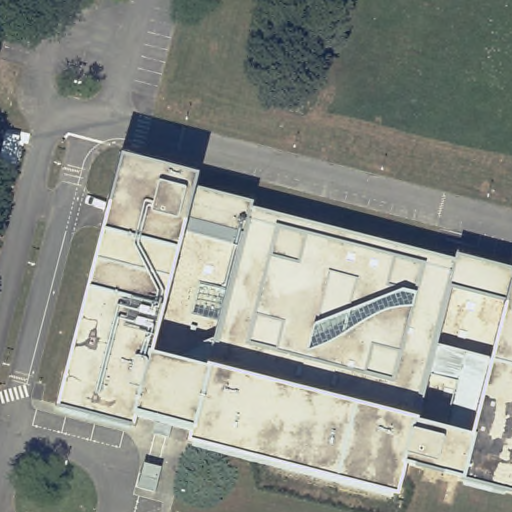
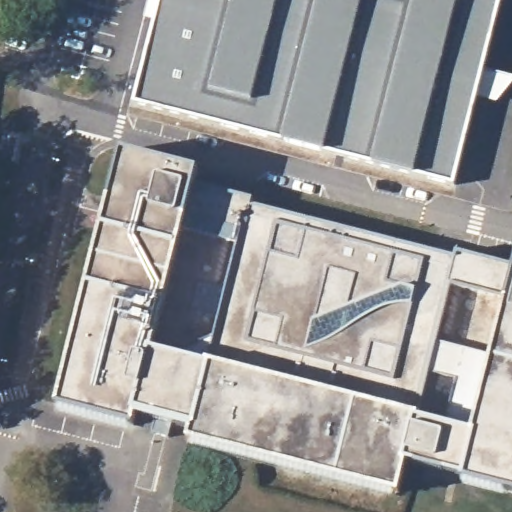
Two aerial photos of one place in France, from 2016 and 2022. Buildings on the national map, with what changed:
new [(502,0),(455,187),(132,105),(158,0),(502,0)]
unchanged [(137,423),(67,406),(130,156),(201,175),(198,189),(255,204),(255,206),(251,219),(400,257),(512,286),(512,489),(410,463),(403,491),(194,438),(197,425),(189,422),(140,410),(137,423)]
unchanged [(497,356),(477,433),(448,425),(458,382),(433,375),(441,343),(497,356)]

